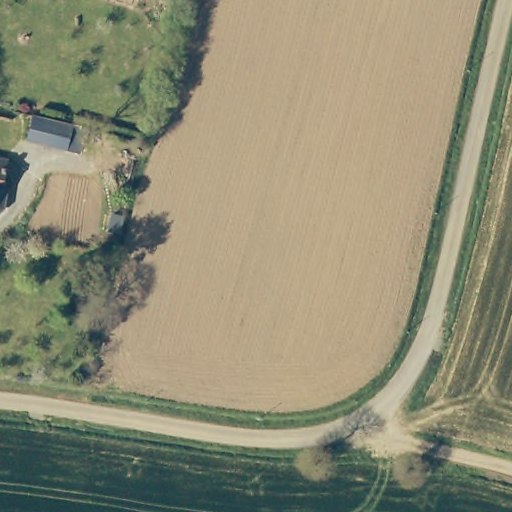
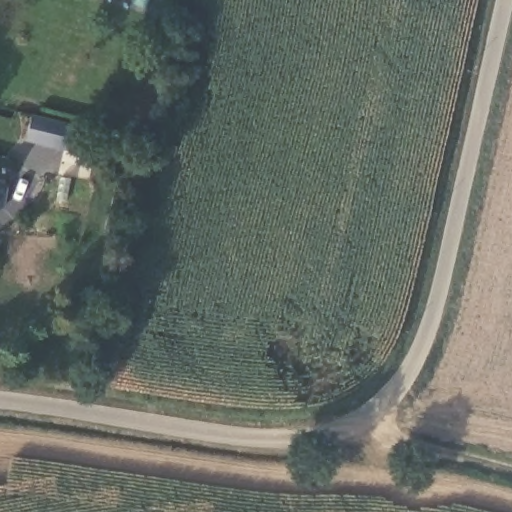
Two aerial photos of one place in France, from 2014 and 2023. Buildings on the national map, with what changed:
unchanged [(68,125),(63,150),(24,141),(29,116),(68,125)]
unchanged [(24,163),(21,173),(11,175),(0,176),(0,157),(13,159),(24,163)]

